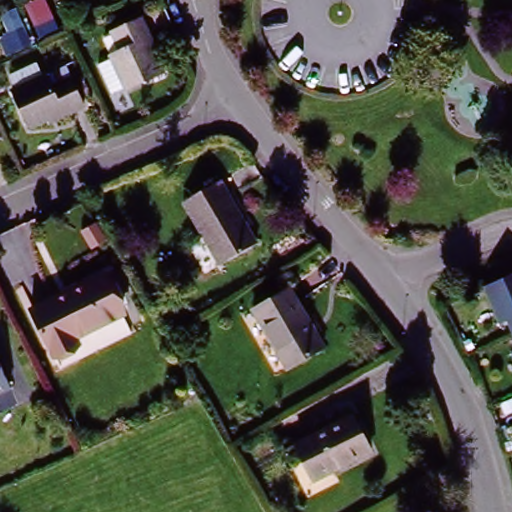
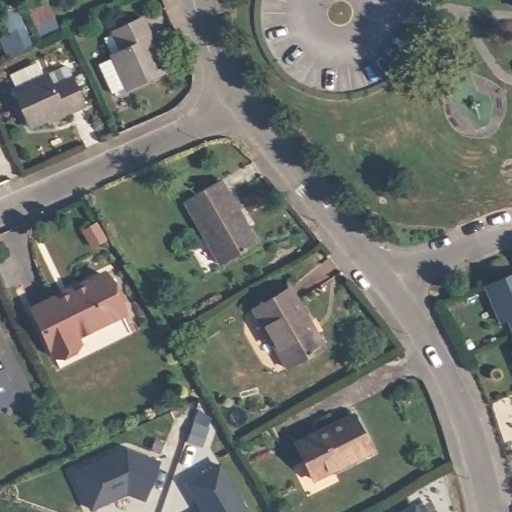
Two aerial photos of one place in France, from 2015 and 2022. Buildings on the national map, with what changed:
unchanged [(20,21),(33,45),(4,55),(0,45),(0,10),(11,3),(20,21)]
unchanged [(119,53),(111,32),(143,19),(166,75),(125,92),(111,56),(119,53)]
unchanged [(12,75),(39,62),(44,76),(47,75),(68,65),(73,76),(86,107),(50,124),(48,120),(30,127),(14,90),(18,89),(12,75)]
unchanged [(254,241),(219,264),(182,205),(220,182),(254,241)]
unchanged [(56,357),(31,307),(99,271),(124,312),(78,337),(83,345),(56,357)]
unchanged [(512,277),(512,338),(505,320),(496,324),(483,289),(512,277)]
unchanged [(288,370),(254,309),(287,289),(324,347),(288,370)]
unchanged [(512,351),(512,357),(510,352),(512,351)]
unchanged [(6,388),(0,391),(0,376),(6,388)]
unchanged [(373,452),(316,482),(298,448),(354,417),(373,452)]
new [(153,499),(136,492),(124,498),(123,495),(116,498),(118,500),(99,509),(83,472),(133,450),(166,461),(153,499)]
new [(208,512),(203,501),(198,503),(188,485),(220,467),(246,512),(208,512)]
new [(430,501),(436,512),(405,512),(417,505),(419,509),(430,501)]

